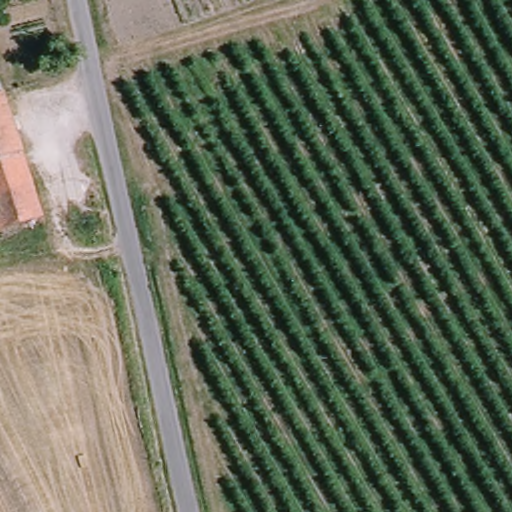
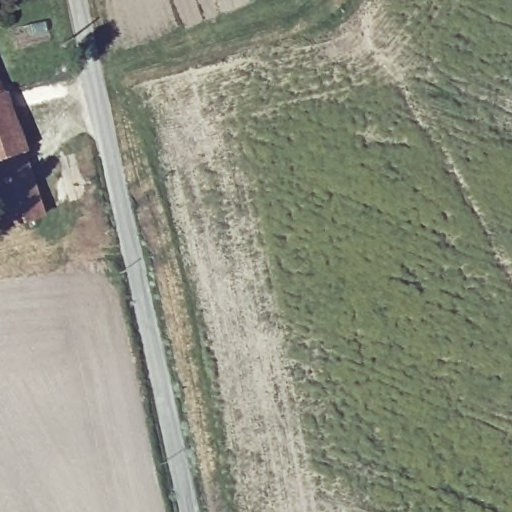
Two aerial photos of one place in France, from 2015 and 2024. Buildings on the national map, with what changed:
unchanged [(0,188),(0,91),(27,180),(0,188)]
unchanged [(0,188),(27,180),(38,215),(0,226),(0,188)]

